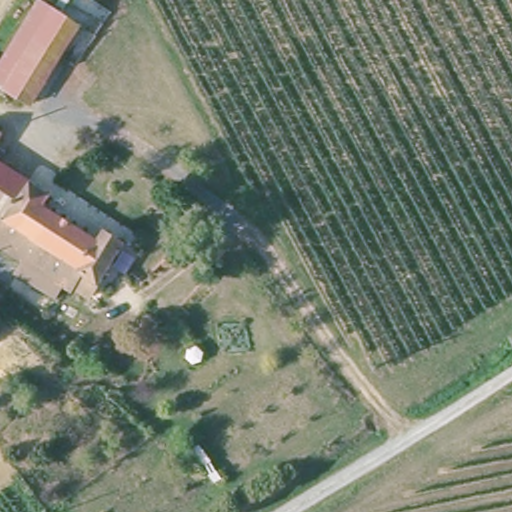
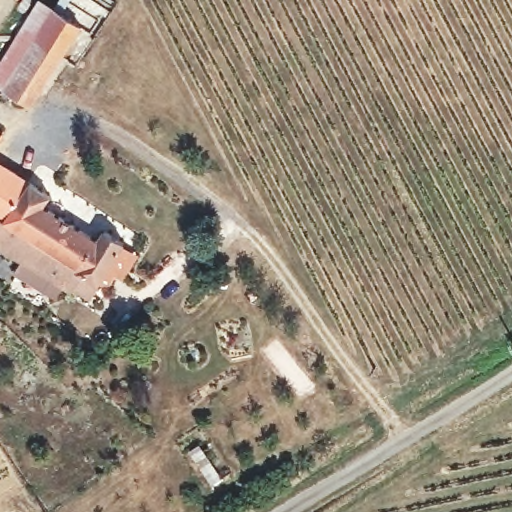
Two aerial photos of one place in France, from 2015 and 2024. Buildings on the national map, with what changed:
unchanged [(9,83),(0,77),(0,68),(48,3),(84,26),(32,99),(9,83)]
unchanged [(0,133),(0,131),(1,131),(0,133)]
unchanged [(0,248),(0,162),(54,196),(51,202),(102,236),(110,226),(128,237),(98,282),(86,301),(68,290),(0,248)]

